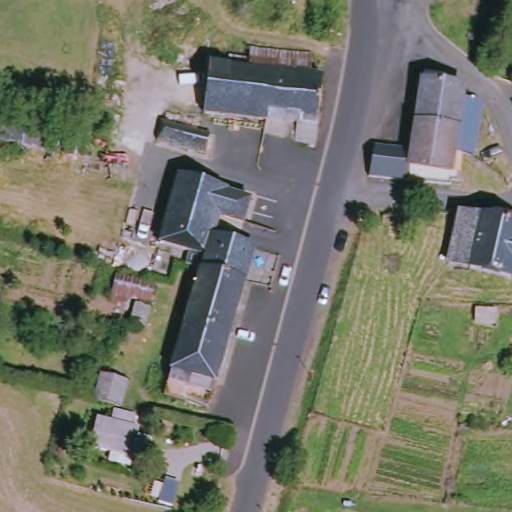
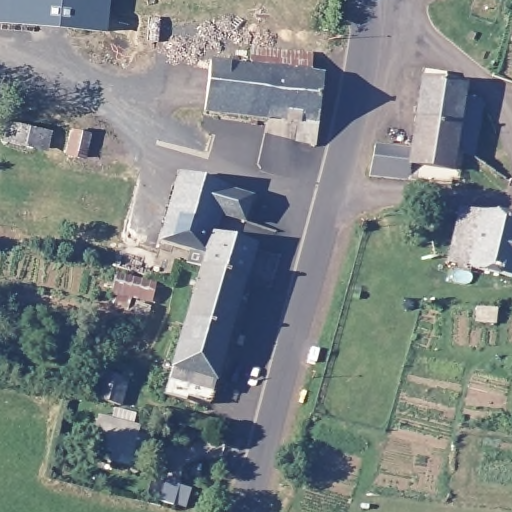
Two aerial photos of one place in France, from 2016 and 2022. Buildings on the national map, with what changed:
new [(0,24),(0,0),(107,0),(103,34),(0,24)]
unchanged [(512,31),(512,54),(504,51),(512,31)]
unchanged [(291,138),(295,120),(203,109),(208,66),(201,65),(201,59),(247,62),(250,44),(310,49),(308,71),(322,73),(315,142),(291,138)]
unchanged [(366,146),(403,153),(413,81),(426,84),(427,79),(442,82),(441,86),(456,89),(454,99),(467,100),(474,108),(472,140),(462,159),(446,154),(442,185),(361,177),(366,146)]
unchanged [(42,144),(0,135),(0,133),(3,119),(45,129),(42,144)]
demolished [(213,135),(208,154),(160,141),(166,123),(213,135)]
unchanged [(81,154),(63,149),(68,128),(87,132),(81,154)]
unchanged [(183,245),(155,238),(174,173),(218,186),(214,198),(231,202),(226,218),(211,214),(206,234),(246,247),(238,278),(194,265),(178,261),(183,245)]
unchanged [(512,235),(512,236),(512,265),(506,263),(501,277),(441,264),(453,214),(477,219),(502,224),(512,228),(512,234),(512,235)]
unchanged [(165,366),(194,265),(238,278),(208,379),(165,366)]
unchanged [(149,299),(110,289),(114,272),(154,282),(149,299)]
unchanged [(143,324),(128,319),(134,299),(149,303),(143,324)]
unchanged [(208,379),(200,405),(158,392),(165,366),(208,379)]
unchanged [(91,399),(99,374),(123,380),(116,404),(98,400),(91,399)]
unchanged [(139,424),(133,451),(89,439),(95,413),(139,424)]

